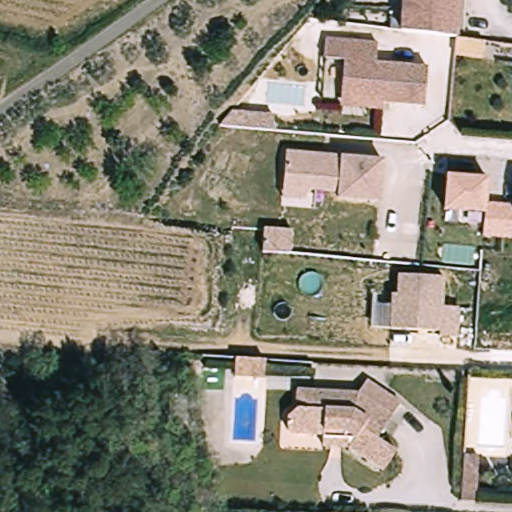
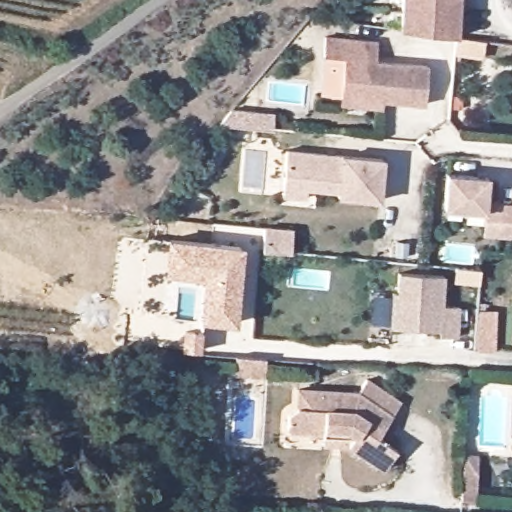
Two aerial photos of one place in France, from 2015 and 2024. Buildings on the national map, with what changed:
unchanged [(457,33),(402,25),(402,21),(403,0),(457,0),(457,26),(457,33)]
unchanged [(337,100),(338,93),(342,54),(321,53),(322,33),(375,38),(372,57),(425,62),(421,100),(380,96),(380,104),(337,100)]
unchanged [(458,50),(455,50),(457,33),(460,34),(485,36),(483,53),(458,50)]
unchanged [(272,131),(221,126),(232,111),(271,115),(272,131)]
unchanged [(277,194),(277,184),(280,148),(376,155),(373,196),(332,193),(332,187),(310,186),(300,185),(300,195),(277,194)]
unchanged [(488,177),(485,202),(502,204),(498,236),(483,234),(484,224),(459,222),(460,209),(445,208),(447,174),(488,177)]
unchanged [(498,236),(502,204),(512,204),(512,236),(498,236)]
unchanged [(290,257),(263,253),(265,228),(293,231),(290,257)]
new [(200,324),(204,282),(165,278),(168,240),(244,248),(237,327),(200,324)]
unchanged [(444,276),(442,306),(460,307),(457,337),(440,336),(440,331),(392,328),(393,293),(398,293),(400,273),(444,276)]
unchanged [(267,358),(266,374),(237,373),(238,356),(267,358)]
unchanged [(406,402),(397,415),(383,437),(402,449),(390,468),(353,446),(327,444),(328,433),(292,431),(293,414),(302,407),(303,390),(362,392),(372,379),(406,402)]
unchanged [(480,454),(476,501),(461,500),(464,453),(480,454)]

